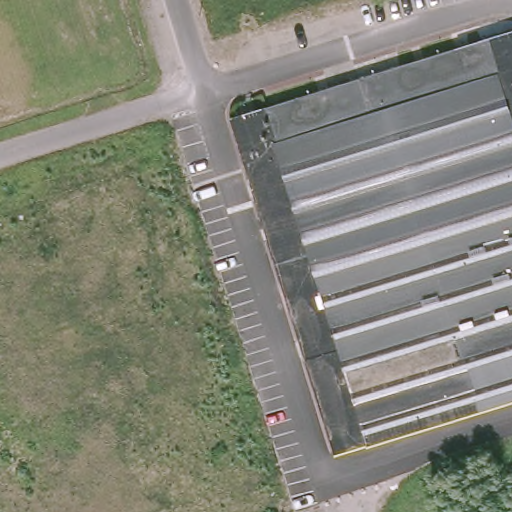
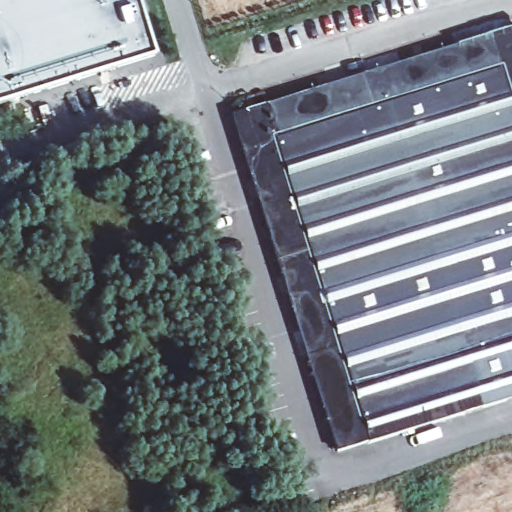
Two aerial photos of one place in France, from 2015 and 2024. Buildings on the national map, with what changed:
new [(145,50),(0,96),(0,0),(130,0),(145,50)]
unchanged [(302,348),(294,351),(289,352),(284,337),(290,335),(298,332),(226,111),(512,25),(512,392),(334,447),(302,348)]

